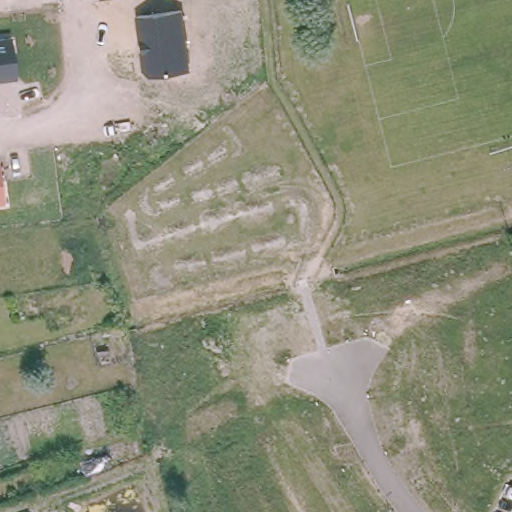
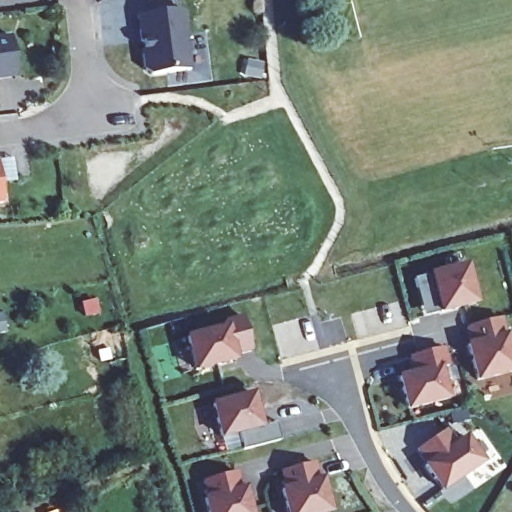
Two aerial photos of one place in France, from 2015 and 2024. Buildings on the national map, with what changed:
unchanged [(183,10),(190,71),(150,76),(142,69),(137,15),(183,10)]
unchanged [(15,78),(0,80),(0,38),(10,36),(15,78)]
unchanged [(3,203),(0,203),(0,175),(3,203)]
new [(465,266),(475,303),(440,312),(433,285),(416,289),(414,279),(465,266)]
new [(0,332),(0,315),(2,315),(6,331),(0,332)]
new [(226,327),(225,322),(242,317),(251,350),(234,354),(235,360),(195,370),(187,337),(226,327)]
new [(468,327),(500,319),(512,363),(512,371),(477,380),(467,345),(472,344),(468,327)]
unchanged [(110,347),(113,360),(100,364),(97,350),(110,347)]
new [(415,373),(410,356),(442,348),(447,366),(440,368),(447,398),(407,409),(399,377),(415,373)]
new [(252,394),(261,426),(248,430),(252,447),(243,450),(238,432),(222,436),(213,405),(252,394)]
new [(445,430),(455,445),(465,437),(482,462),(442,490),(425,465),(427,463),(417,449),(445,430)]
new [(318,480),(322,478),(330,511),(328,512),(288,512),(282,489),(285,488),(282,470),(313,462),(318,480)]
new [(240,490),(244,488),(250,512),(208,512),(205,499),(208,498),(204,480),(235,472),(240,490)]

